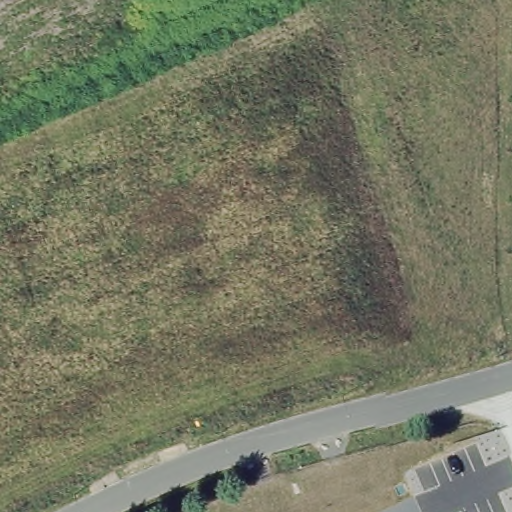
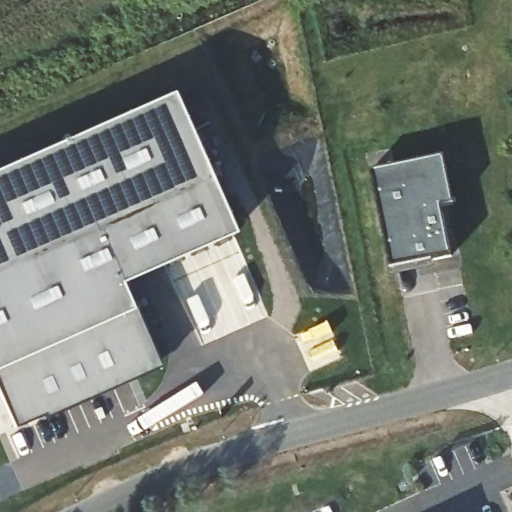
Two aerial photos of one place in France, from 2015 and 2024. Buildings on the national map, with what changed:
new [(233,232),(119,283),(131,310),(158,367),(43,420),(40,416),(14,428),(0,399),(0,168),(170,93),(233,232)]
new [(443,156),(454,205),(441,207),(451,256),(389,269),(369,171),(443,156)]

